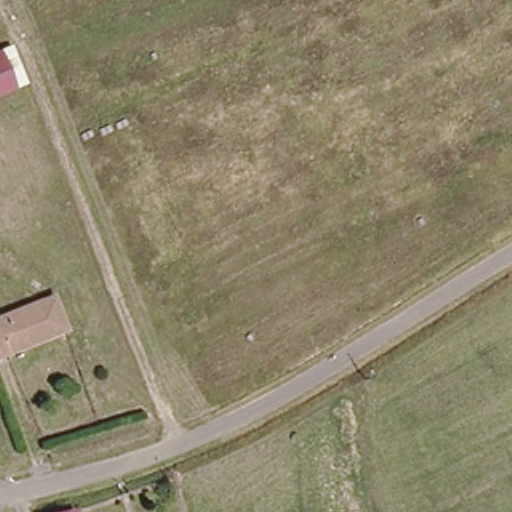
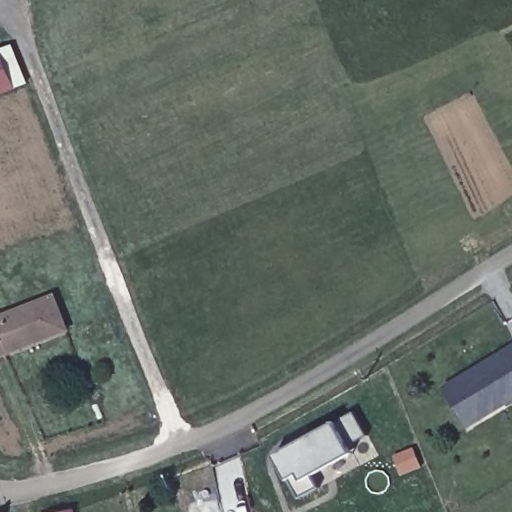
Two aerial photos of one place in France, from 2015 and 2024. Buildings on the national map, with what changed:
unchanged [(23,89),(0,97),(0,52),(9,49),(23,89)]
unchanged [(62,331),(0,355),(0,315),(49,296),(62,331)]
new [(468,428),(443,387),(512,346),(512,402),(468,428)]
new [(348,446),(352,455),(316,475),(320,487),(299,498),(288,480),(276,455),(336,423),(355,414),(366,436),(348,446)]
unchanged [(73,504),(75,512),(40,512),(73,504)]

